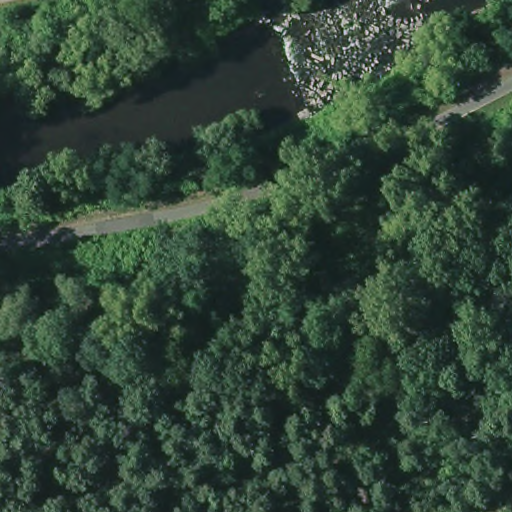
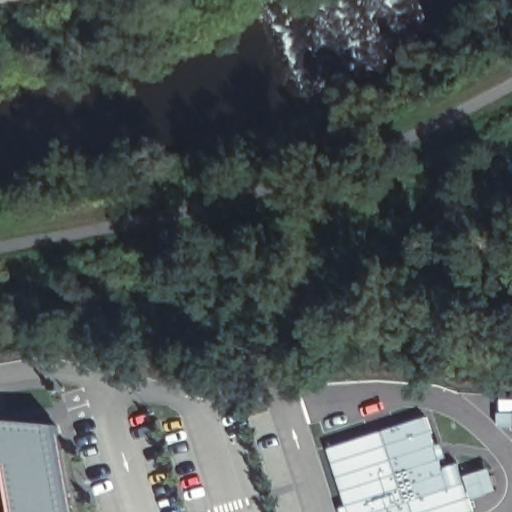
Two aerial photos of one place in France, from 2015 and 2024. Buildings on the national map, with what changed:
new [(512,429),(500,428),(500,398),(512,398),(512,429)]
new [(471,500),(474,511),(471,512),(347,512),(325,448),(428,415),(443,466),(458,461),(463,475),(488,467),(497,490),(471,500)]
new [(59,425),(74,512),(0,512),(0,419),(59,425)]

